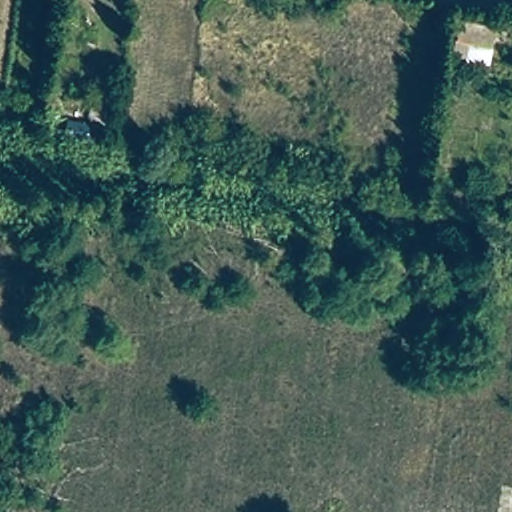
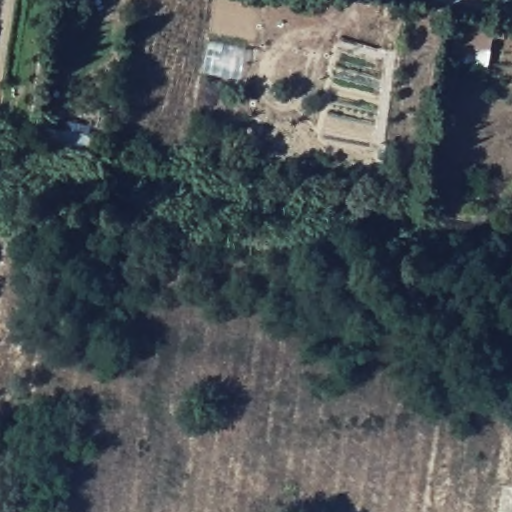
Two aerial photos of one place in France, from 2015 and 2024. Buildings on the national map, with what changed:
unchanged [(494,32),(489,70),(451,63),(457,24),(494,32)]

